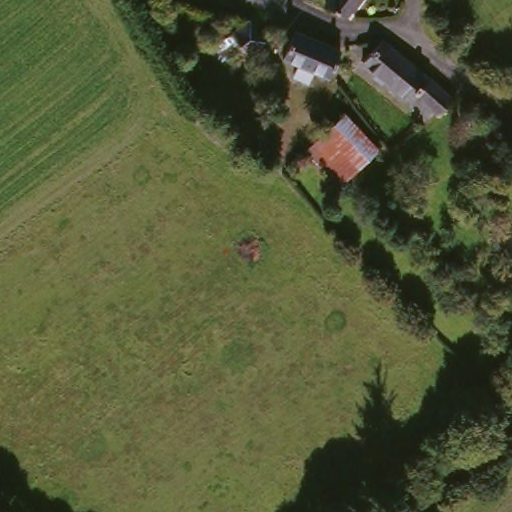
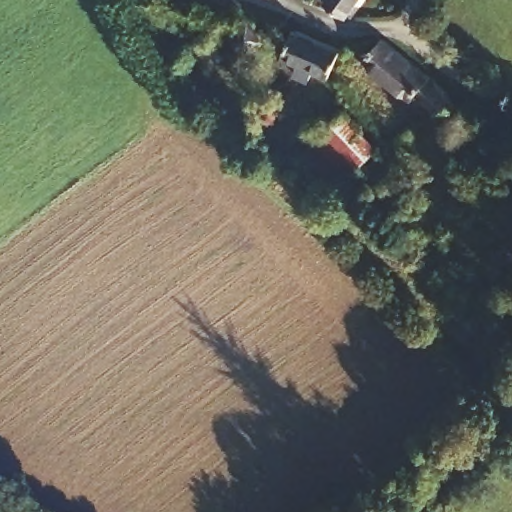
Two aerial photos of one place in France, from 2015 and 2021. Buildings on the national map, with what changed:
unchanged [(358,0),(336,21),(316,5),(321,0),(358,0)]
unchanged [(243,61),(231,48),(224,40),(248,27),(261,44),(243,61)]
unchanged [(323,79),(283,57),(294,37),(295,36),(339,58),(323,79)]
unchanged [(438,119),(425,110),(419,115),(363,73),(381,50),(456,98),(438,119)]
unchanged [(381,141),(339,187),(319,168),(301,150),(339,105),(341,108),(359,123),(381,141)]

